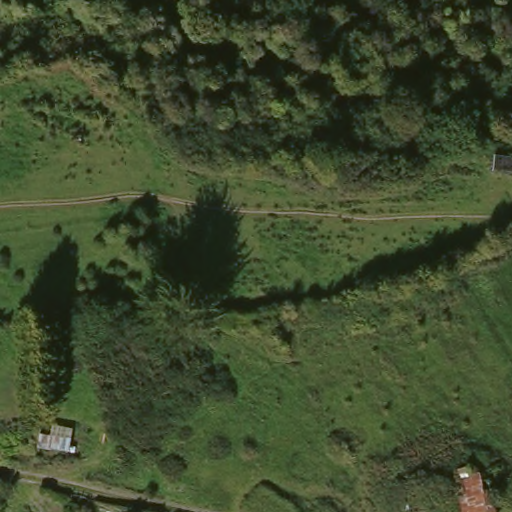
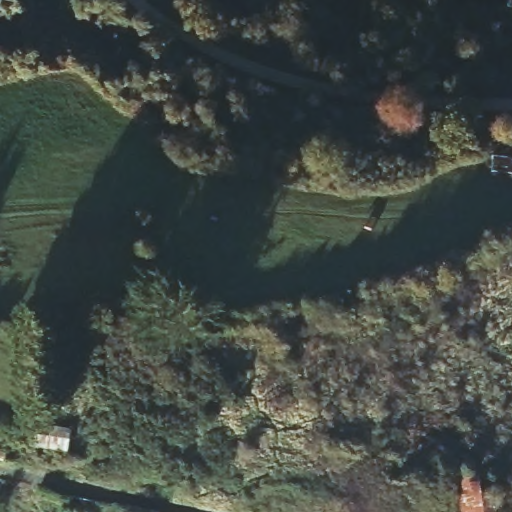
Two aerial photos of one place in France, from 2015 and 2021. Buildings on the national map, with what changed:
unchanged [(512,461),(512,486),(501,488),(502,512),(468,512),(467,466),(512,461)]

